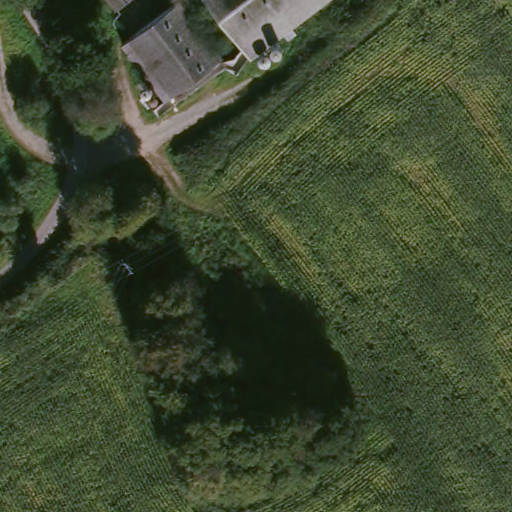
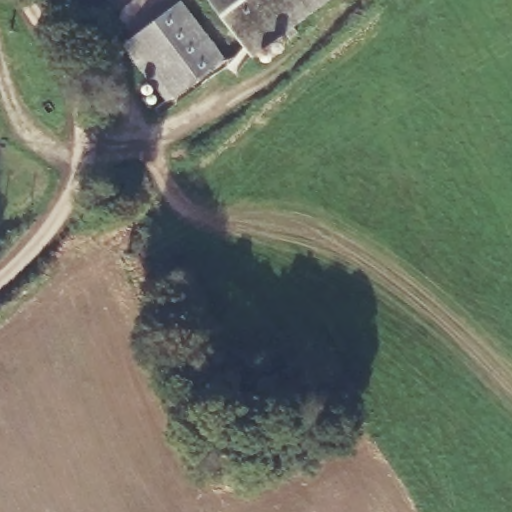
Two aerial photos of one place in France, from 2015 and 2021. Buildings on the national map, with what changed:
unchanged [(106,0),(131,0),(115,12),(106,0)]
unchanged [(226,51),(167,96),(142,60),(125,33),(142,20),(171,0),(187,0),(226,51)]
unchanged [(255,58),(212,0),(326,0),(255,58)]

